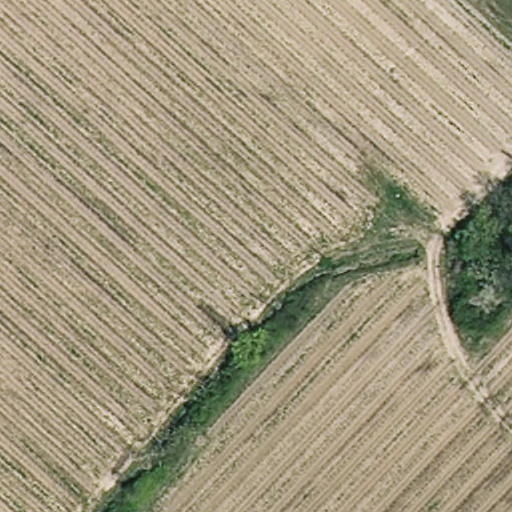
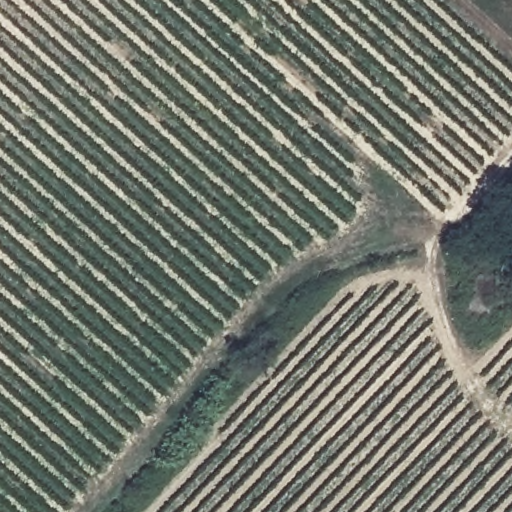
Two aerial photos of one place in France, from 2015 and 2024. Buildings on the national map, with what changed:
unchanged [(477,292),(493,275),(512,288),(512,298),(497,313),(477,292)]

